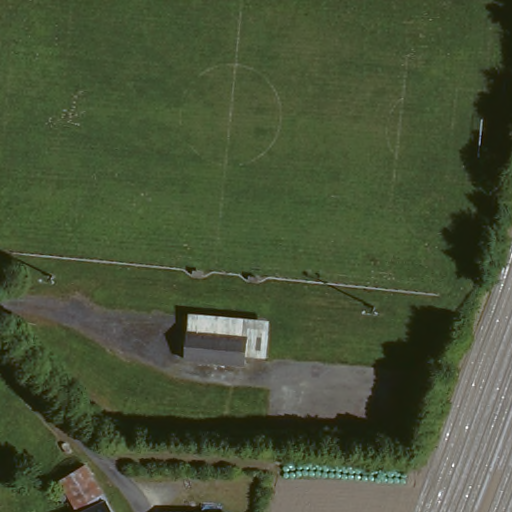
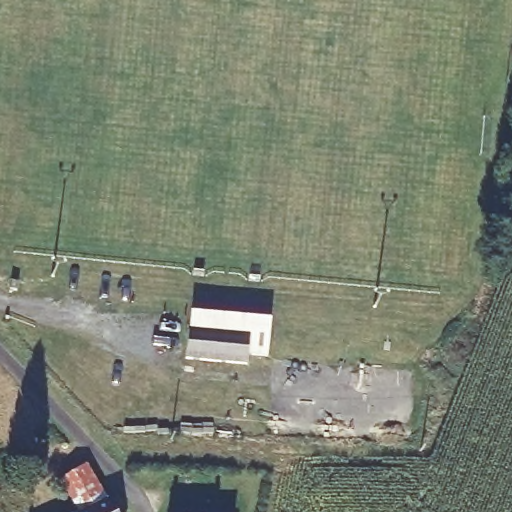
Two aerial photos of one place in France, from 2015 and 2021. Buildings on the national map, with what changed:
unchanged [(272,347),(252,345),(251,352),(191,346),(194,317),(254,324),(273,326),(272,347)]
unchanged [(89,474),(90,472),(97,475),(98,476),(103,485),(114,505),(116,509),(118,512),(89,512),(79,481),(89,474)]
unchanged [(174,512),(174,509),(211,512),(174,512)]

